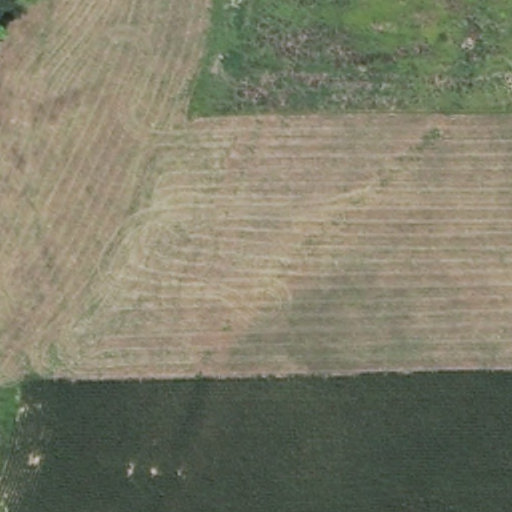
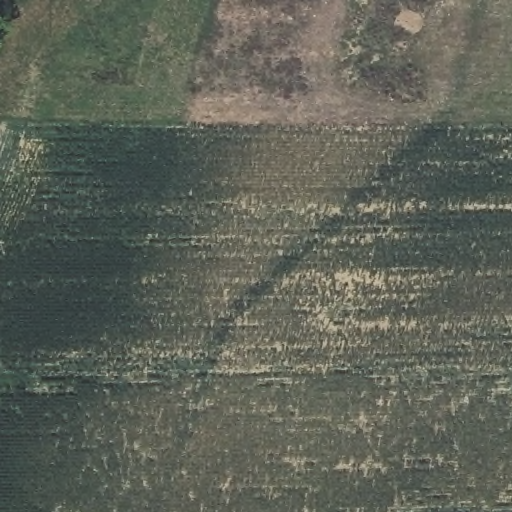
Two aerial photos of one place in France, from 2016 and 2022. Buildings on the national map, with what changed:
[]

